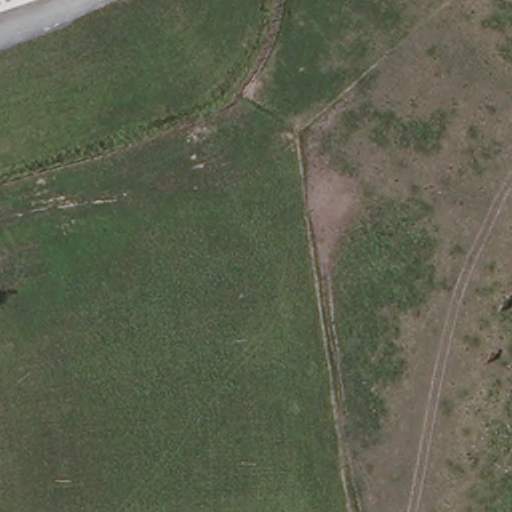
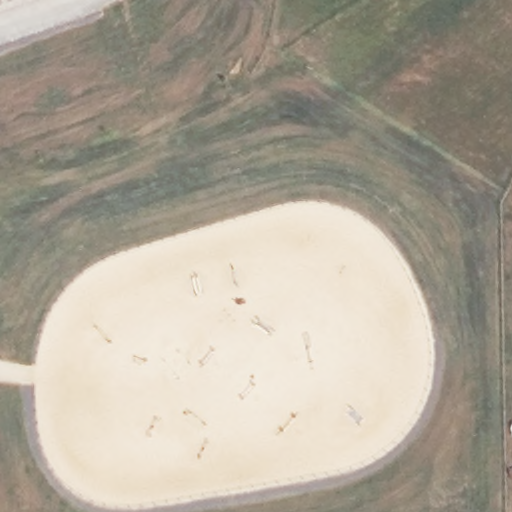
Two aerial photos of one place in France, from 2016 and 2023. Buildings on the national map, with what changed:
unchanged [(0,12),(0,0),(34,0),(0,12)]

